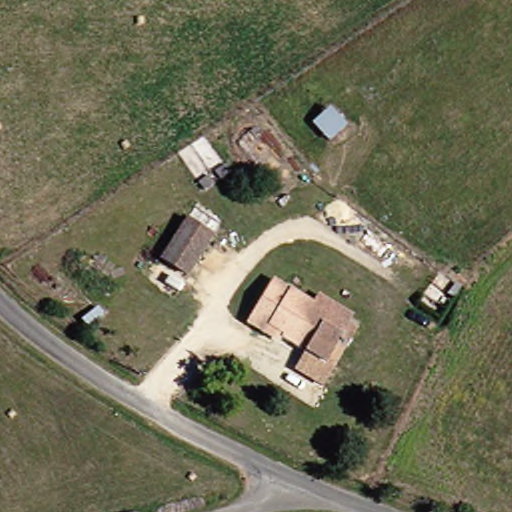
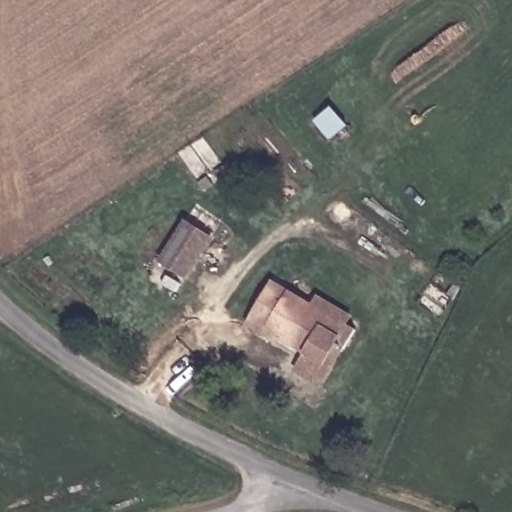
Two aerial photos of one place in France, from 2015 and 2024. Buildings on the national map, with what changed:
unchanged [(328,109),(350,132),(329,151),(307,127),(328,109)]
unchanged [(183,275),(161,260),(178,231),(181,227),(203,242),(183,275)]
unchanged [(336,348),(326,366),(266,331),(261,337),(243,327),(268,285),(354,335),(343,353),(336,348)]

